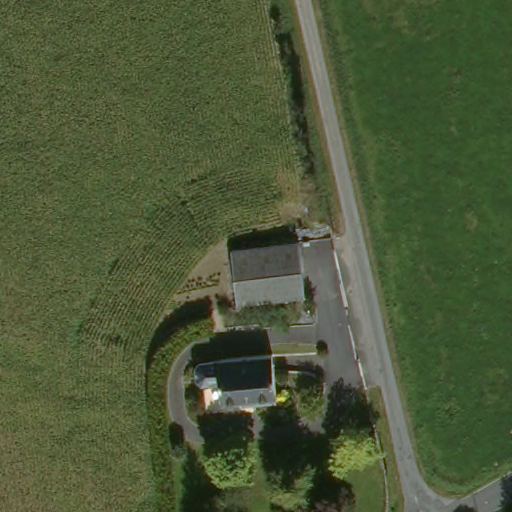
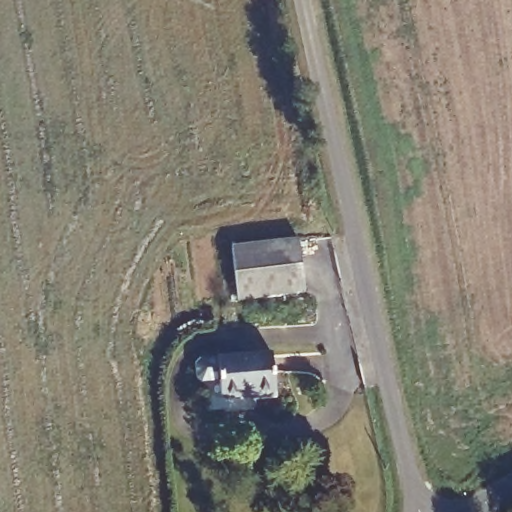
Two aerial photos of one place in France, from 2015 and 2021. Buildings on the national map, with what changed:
unchanged [(308,292),(237,296),(233,247),(303,243),(308,292)]
unchanged [(223,394),(222,376),(203,377),(199,373),(198,360),(202,355),(219,353),(279,350),(283,392),(223,394)]

